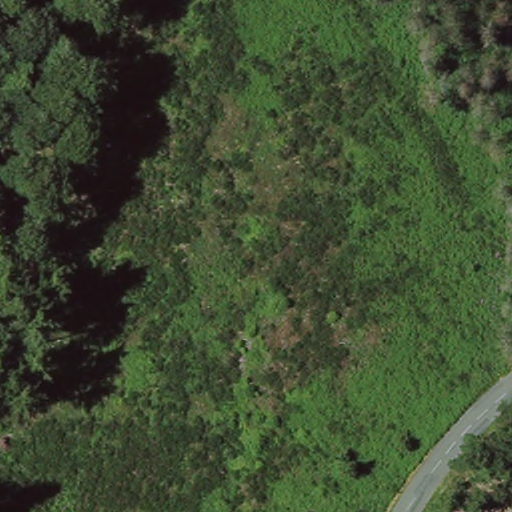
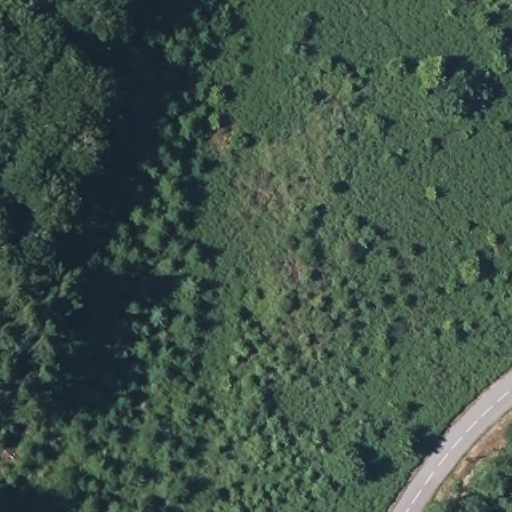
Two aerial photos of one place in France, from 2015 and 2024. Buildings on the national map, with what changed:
[]

